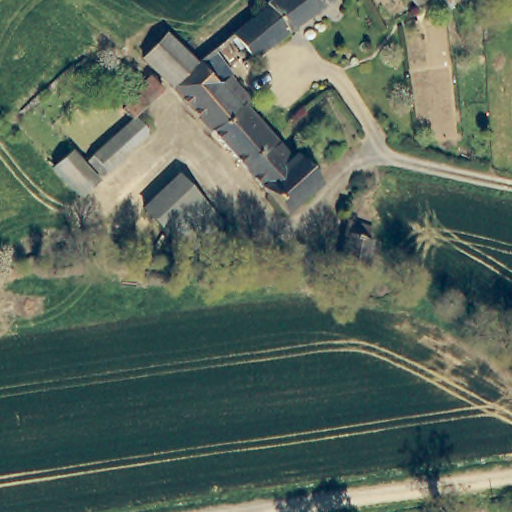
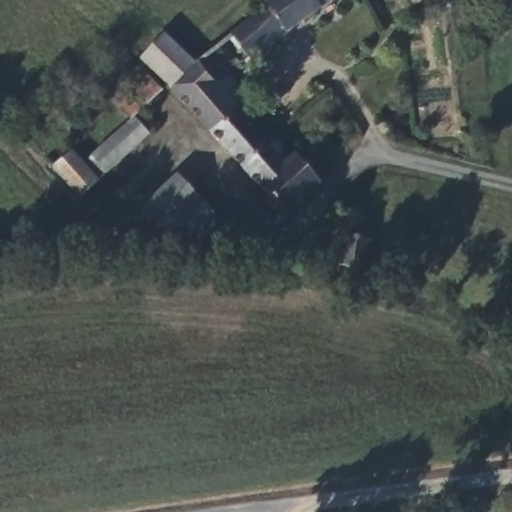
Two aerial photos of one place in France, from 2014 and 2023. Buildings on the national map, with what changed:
unchanged [(234,75),(253,98),(249,101),(242,107),(201,60),(266,7),(263,3),(267,0),(328,0),(234,75)]
unchanged [(423,6),(419,0),(435,0),(423,6)]
unchanged [(198,63),(172,85),(146,59),(170,32),(177,41),(198,63)]
unchanged [(294,154),(297,151),(323,180),(288,211),(172,85),(198,63),(201,60),(242,107),(249,101),(281,137),(294,154)]
unchanged [(165,91),(137,116),(152,133),(107,177),(91,160),(135,120),(124,108),(137,94),(134,90),(150,75),(165,91)]
unchanged [(102,182),(84,197),(56,169),(72,154),(102,182)]
unchanged [(172,237),(146,210),(178,175),(206,203),(172,237)]
unchanged [(226,222),(197,254),(194,257),(190,254),(172,237),(206,203),(226,222)]
unchanged [(373,237),(368,268),(340,263),(343,232),(367,235),(373,237)]

